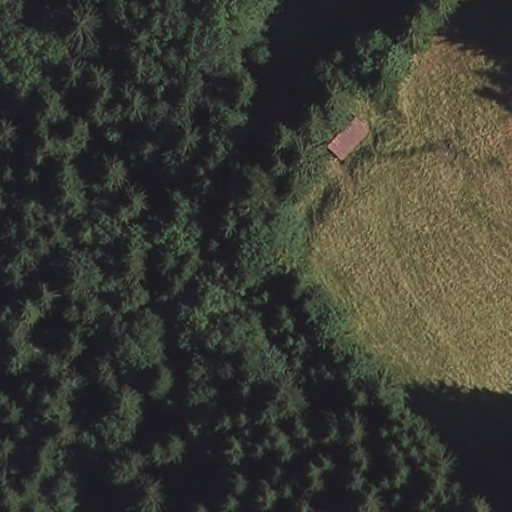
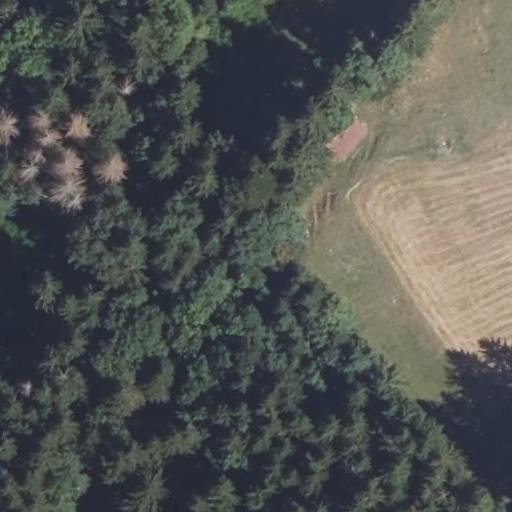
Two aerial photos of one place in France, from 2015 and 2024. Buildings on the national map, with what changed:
unchanged [(372,137),(346,162),(321,137),(346,115),(372,137)]

